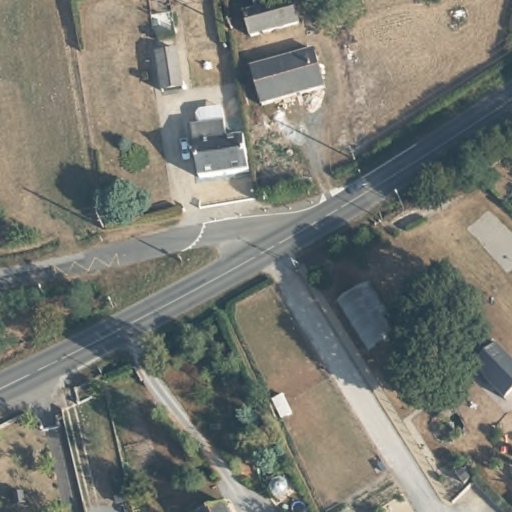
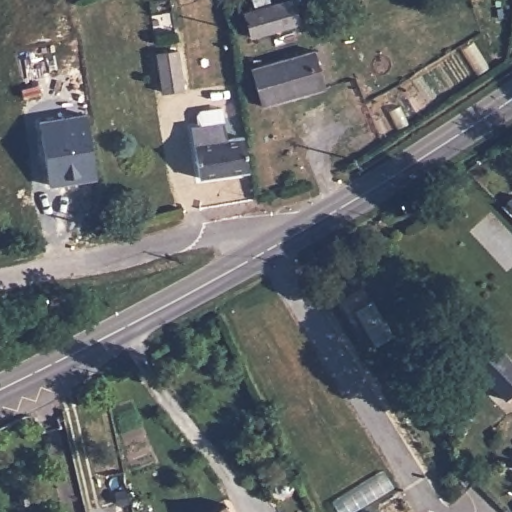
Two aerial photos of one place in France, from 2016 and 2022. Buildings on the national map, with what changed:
unchanged [(301,14),(253,33),(244,10),(271,0),(295,0),(301,14)]
unchanged [(180,82),(160,87),(154,50),(174,47),(180,82)]
unchanged [(261,102),(252,67),(311,47),(322,81),(261,102)]
unchanged [(251,167),(198,176),(189,124),(196,123),(193,112),(203,110),(202,104),(223,102),(229,135),(244,134),(251,167)]
new [(49,184),(39,120),(86,113),(97,177),(49,184)]
unchanged [(512,354),(512,398),(508,401),(479,371),(504,346),(512,354)]
unchanged [(212,512),(228,505),(232,512),(212,512)]

